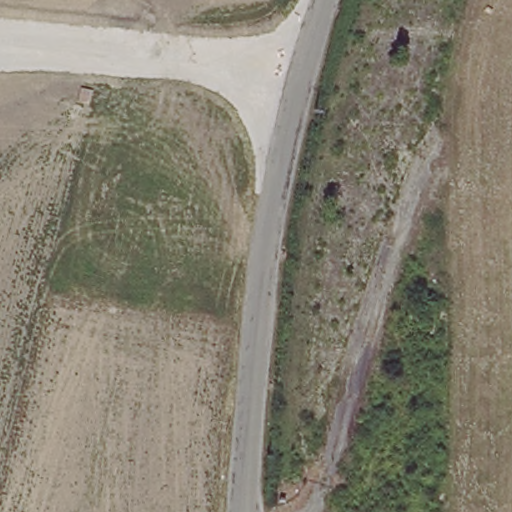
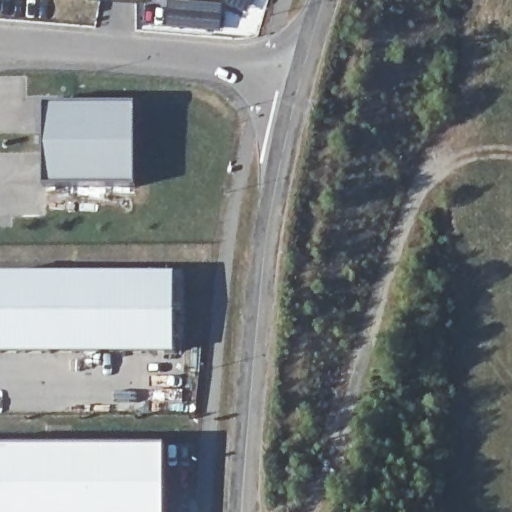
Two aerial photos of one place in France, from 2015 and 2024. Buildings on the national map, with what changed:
new [(138,97),(137,180),(45,179),(45,95),(138,97)]
new [(177,268),(177,344),(0,345),(0,269),(0,268),(177,268)]
new [(164,446),(164,512),(0,512),(0,447),(164,446)]

